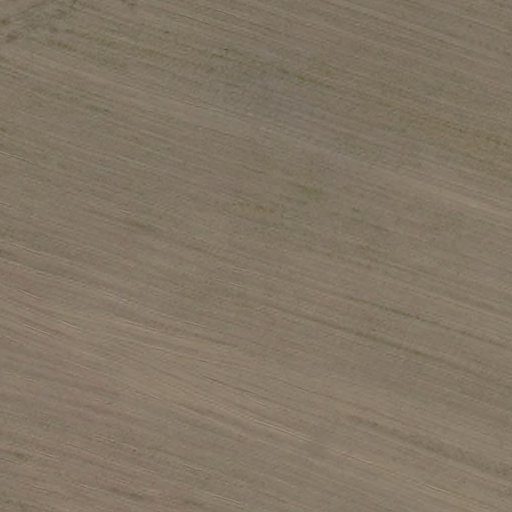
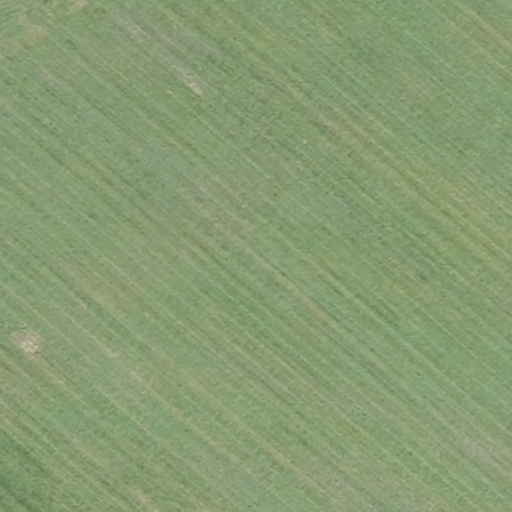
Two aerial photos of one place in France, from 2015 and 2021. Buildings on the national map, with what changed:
[]

